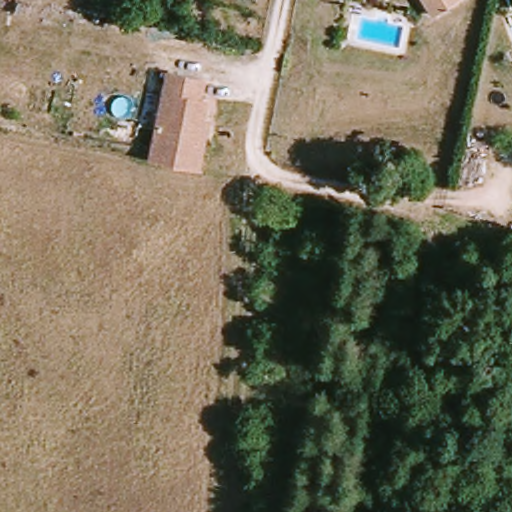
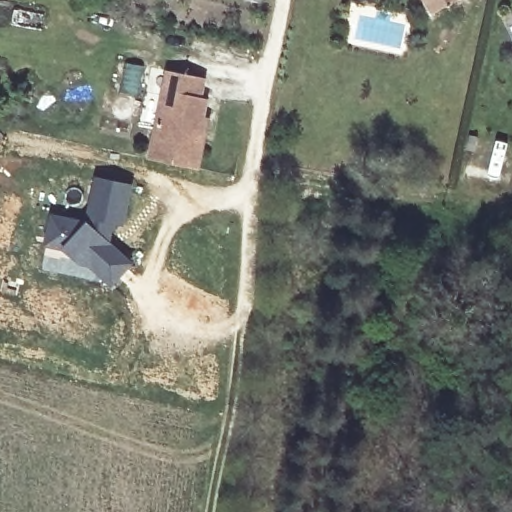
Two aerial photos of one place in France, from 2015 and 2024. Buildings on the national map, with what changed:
unchanged [(432,13),(424,0),(453,0),(447,4),(432,13)]
unchanged [(206,138),(202,169),(152,162),(166,69),(203,75),(201,94),(206,94),(204,114),(208,114),(206,138)]
new [(133,261),(115,283),(93,265),(82,263),(66,250),(48,247),(51,219),(87,224),(94,179),(128,184),(122,223),(112,221),(110,231),(109,241),(133,261)]

